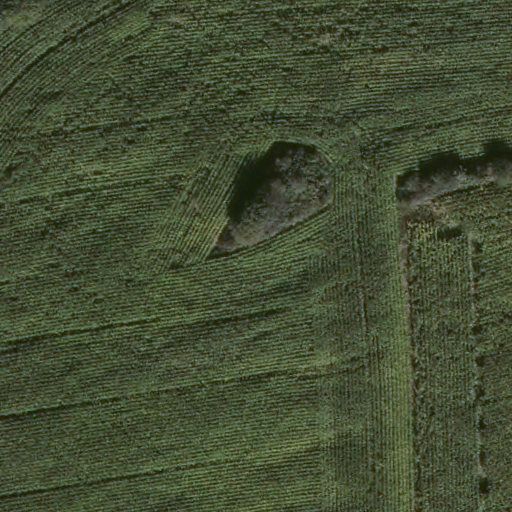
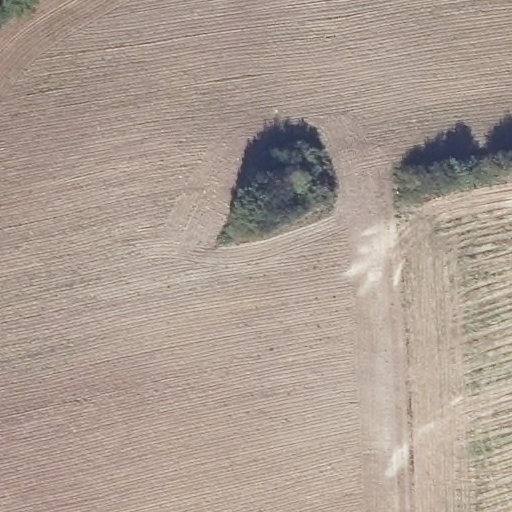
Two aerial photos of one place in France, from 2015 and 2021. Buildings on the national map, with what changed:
[]

